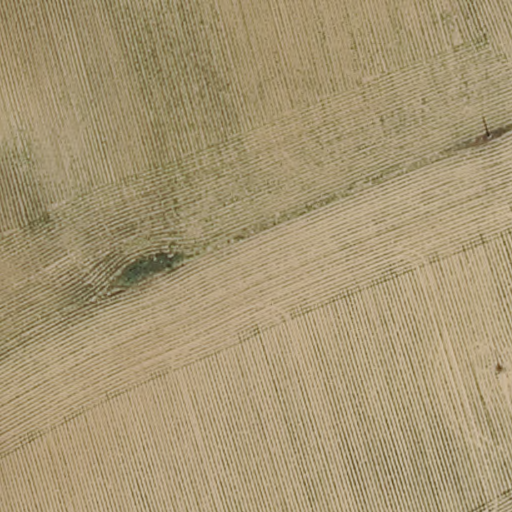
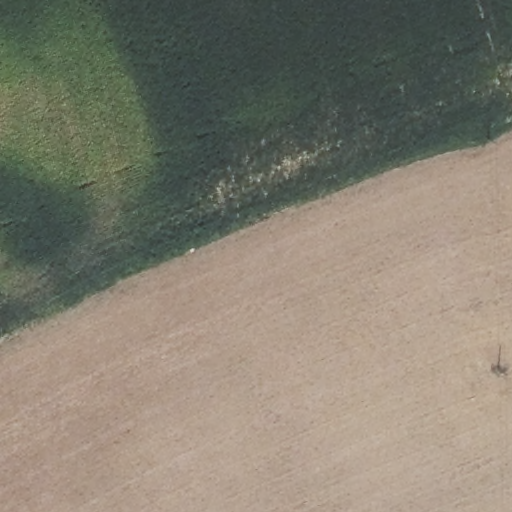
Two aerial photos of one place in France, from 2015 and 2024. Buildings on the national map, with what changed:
[]

